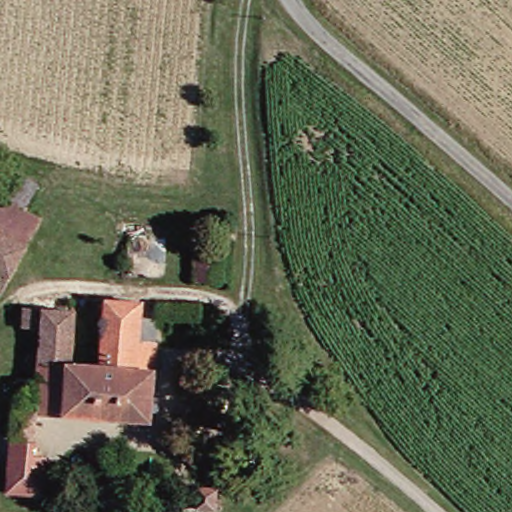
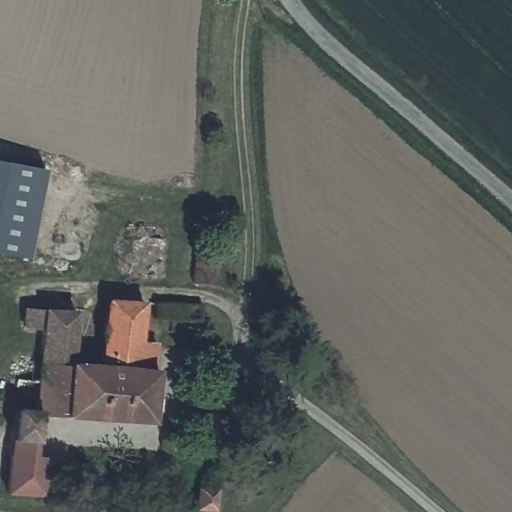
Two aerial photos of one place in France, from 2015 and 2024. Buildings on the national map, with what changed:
new [(25,259),(0,256),(0,168),(32,173),(25,259)]
demolished [(19,274),(0,263),(0,224),(35,243),(19,274)]
unchanged [(194,283),(199,245),(200,225),(228,229),(226,248),(222,286),(194,283)]
unchanged [(49,490),(11,485),(24,370),(45,373),(52,306),(83,310),(78,360),(104,363),(114,297),(152,301),(147,338),(164,341),(160,368),(152,428),(57,412),(54,438),(49,490)]
unchanged [(209,512),(199,510),(202,487),(221,489),(220,500),(219,512),(209,512)]

